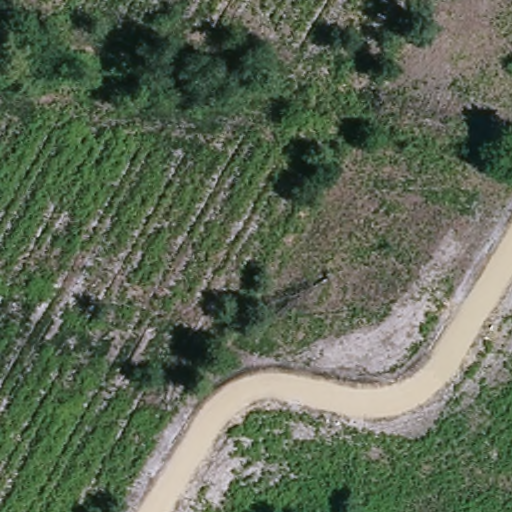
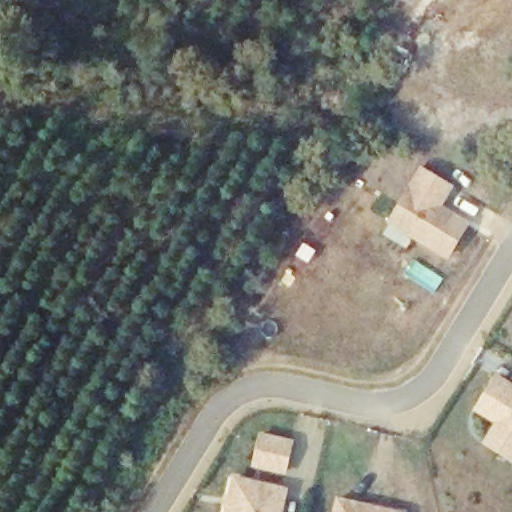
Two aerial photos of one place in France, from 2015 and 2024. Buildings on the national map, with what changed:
new [(454,186),(443,206),(470,222),(448,260),(386,224),(419,166),(454,186)]
new [(494,423),(473,411),(496,374),(512,383),(512,462),(482,443),(494,423)]
new [(251,467),(259,433),(294,440),(286,475),(251,467)]
new [(287,487),(282,512),(225,512),(232,477),(287,487)]
new [(404,512),(333,512),(337,496),(404,512)]

